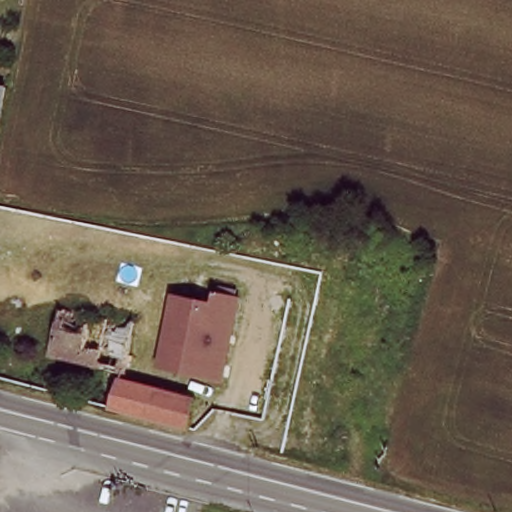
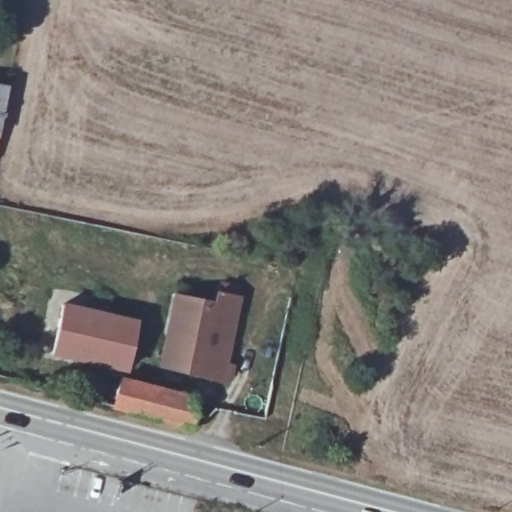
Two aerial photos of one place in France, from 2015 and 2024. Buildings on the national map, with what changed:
unchanged [(0,116),(0,85),(6,87),(0,116)]
unchanged [(218,291),(241,296),(223,380),(159,365),(175,292),(213,300),(218,291)]
new [(138,321),(127,372),(50,353),(62,303),(138,321)]
unchanged [(184,427),(131,413),(110,407),(115,382),(137,387),(191,400),(184,427)]

